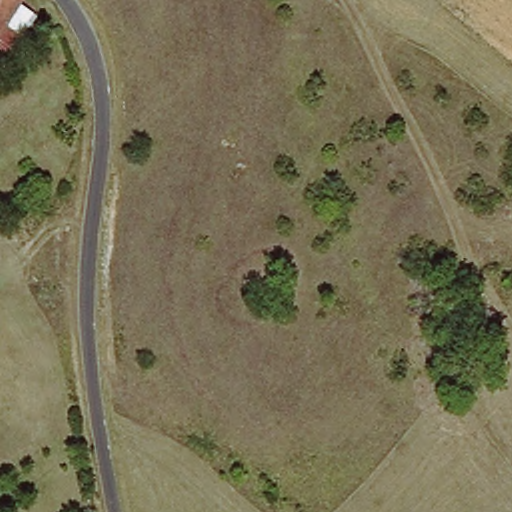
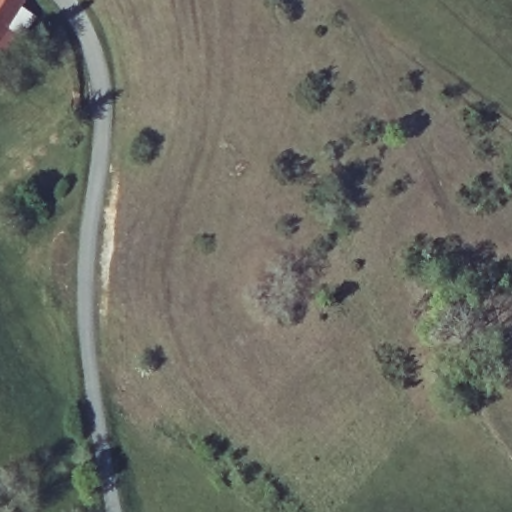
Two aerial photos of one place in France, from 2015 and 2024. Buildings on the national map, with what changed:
unchanged [(0,0),(22,0),(0,34),(0,0)]

